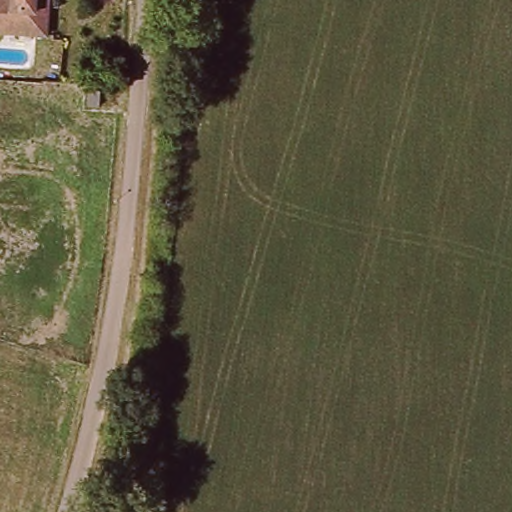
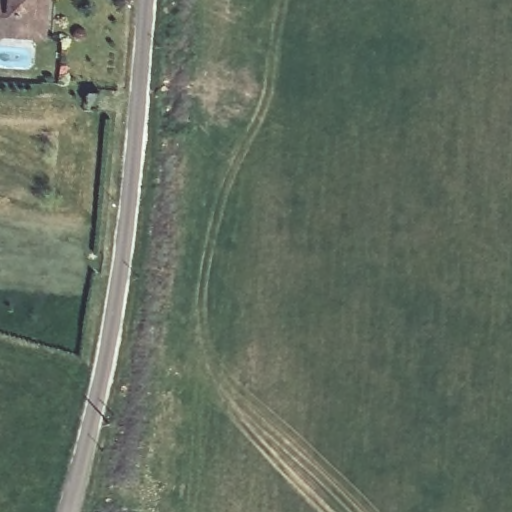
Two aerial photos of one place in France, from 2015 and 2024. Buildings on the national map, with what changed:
unchanged [(38,0),(35,43),(0,42),(0,0),(38,0)]

